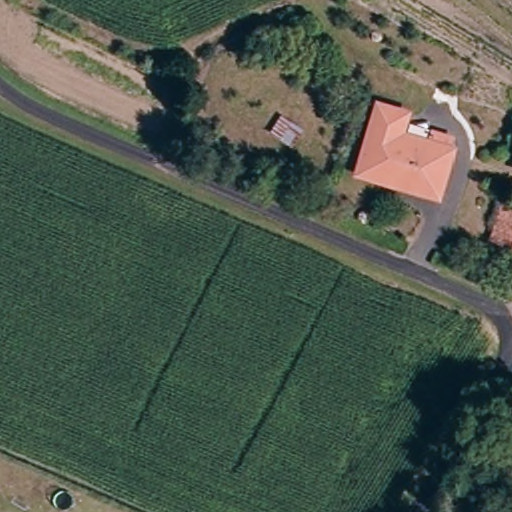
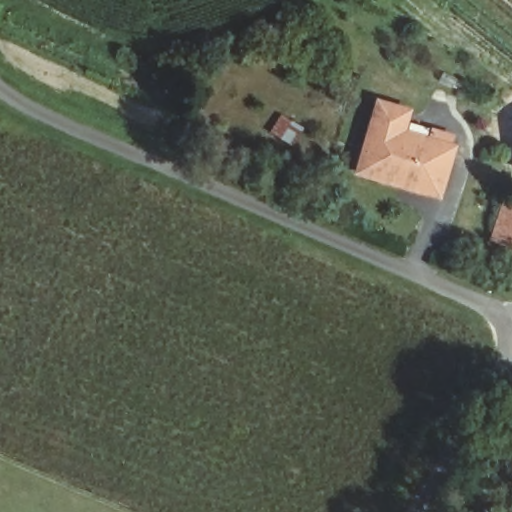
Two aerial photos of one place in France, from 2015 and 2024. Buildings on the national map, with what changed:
unchanged [(400,182),(358,163),(387,100),(409,109),(401,129),(453,152),(438,186),(433,197),(400,182)]
unchanged [(512,196),(512,247),(491,240),(507,194),(512,196)]

